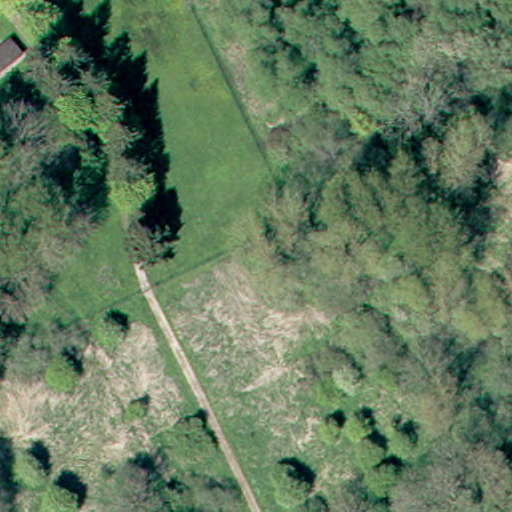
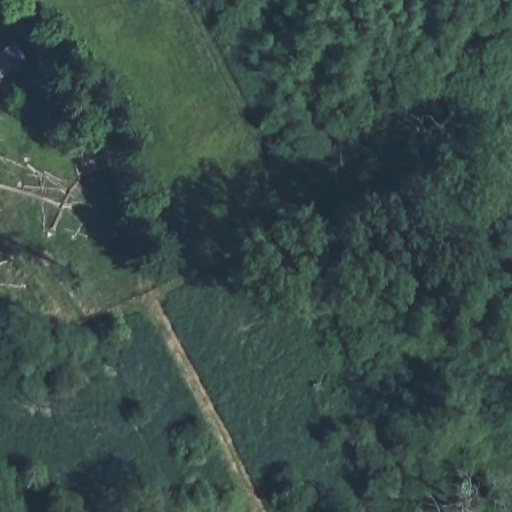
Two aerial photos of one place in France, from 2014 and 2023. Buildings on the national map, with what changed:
unchanged [(0,73),(0,51),(9,45),(23,57),(0,73)]

